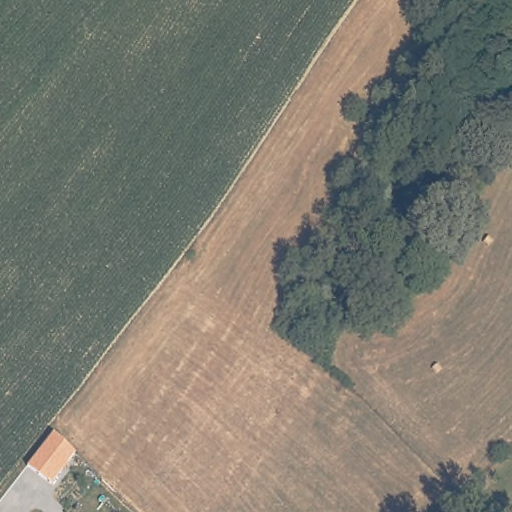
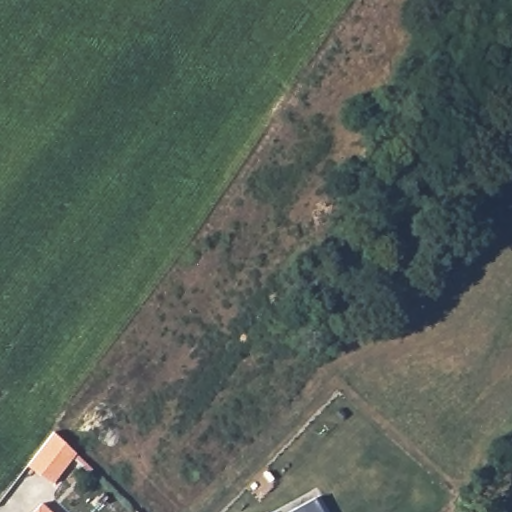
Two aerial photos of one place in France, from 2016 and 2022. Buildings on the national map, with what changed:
unchanged [(75,452),(50,484),(28,465),(54,431),(75,452)]
new [(288,512),(288,511),(314,498),(322,512),(288,512)]

